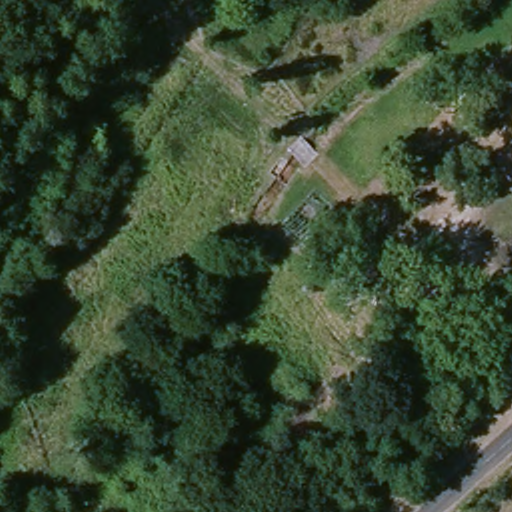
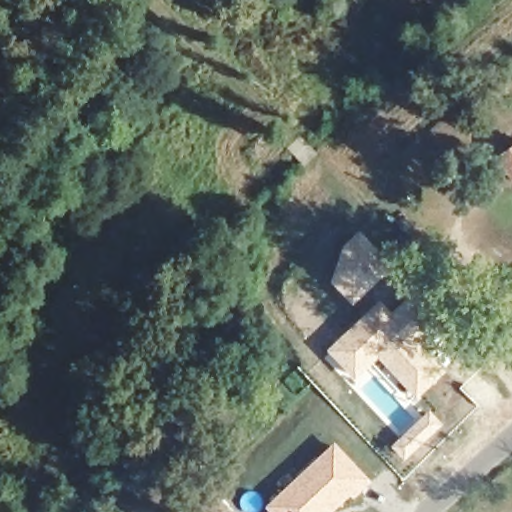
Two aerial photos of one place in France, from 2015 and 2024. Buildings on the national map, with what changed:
unchanged [(512,146),(512,177),(498,156),(512,146)]
unchanged [(311,175),(303,189),(296,185),(287,180),(280,177),(289,161),(295,165),(301,169),(304,170),(311,175)]
new [(341,248),(359,230),(393,265),(352,306),(327,280),(341,248)]
new [(379,300),(393,315),(402,324),(407,330),(378,359),(353,383),(325,351),(379,300)]
new [(407,330),(402,324),(409,317),(400,308),(406,303),(427,329),(423,333),(420,330),(400,347),(417,365),(429,354),(438,366),(442,362),(445,366),(415,398),(378,359),(407,330)]
new [(429,409),(443,424),(404,462),(389,447),(429,409)]
new [(334,441),(372,481),(338,508),(333,512),(268,512),(263,506),(334,441)]

